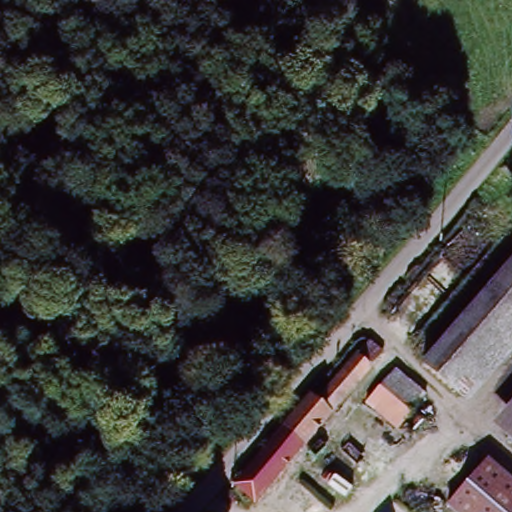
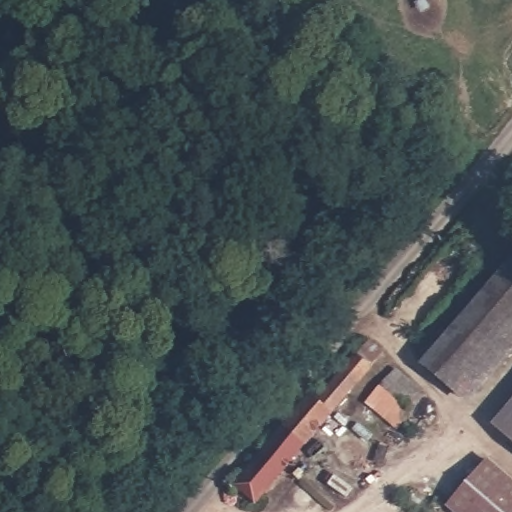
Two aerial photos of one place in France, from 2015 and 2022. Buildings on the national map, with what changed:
unchanged [(464,404),(419,362),(512,262),(512,353),(464,404)]
unchanged [(285,427),(311,396),(320,404),(360,359),(372,369),(305,445),(285,427)]
unchanged [(431,395),(398,433),(365,405),(397,367),(431,395)]
unchanged [(512,405),(512,445),(492,426),(512,405)]
unchanged [(348,440),(364,423),(396,450),(380,467),(348,440)]
unchanged [(246,472),(285,427),(305,445),(266,488),(246,512),(243,512),(226,496),(246,472)]
unchanged [(494,462),(512,479),(512,512),(459,512),(451,504),(494,462)]

